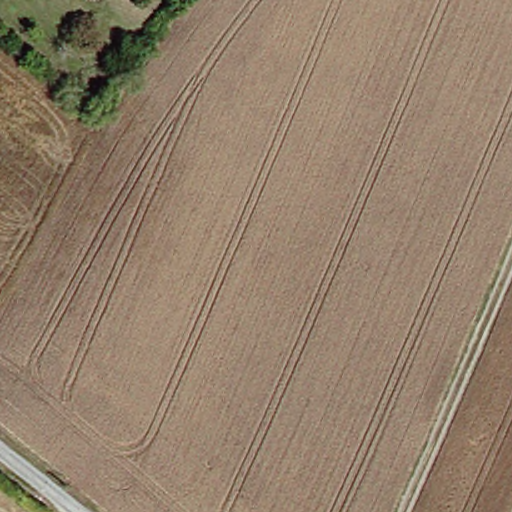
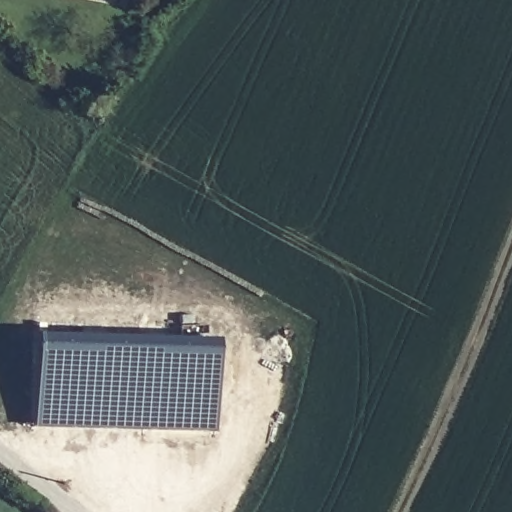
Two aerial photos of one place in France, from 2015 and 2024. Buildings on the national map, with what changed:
new [(134,435),(28,430),(33,340),(139,346),(134,435)]
new [(206,440),(134,436),(139,346),(211,350),(206,440)]

